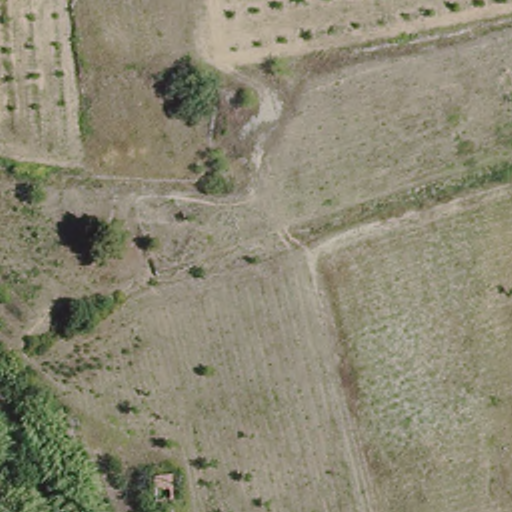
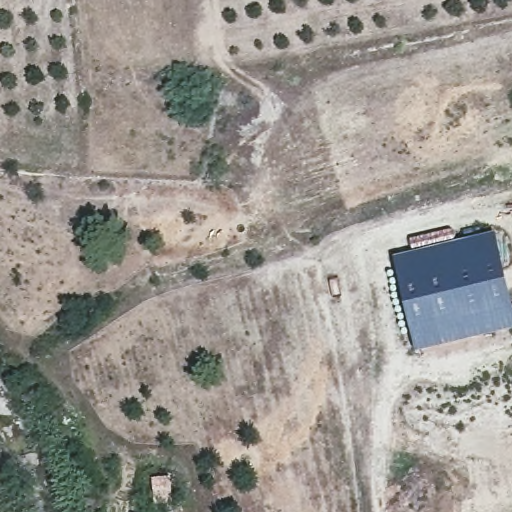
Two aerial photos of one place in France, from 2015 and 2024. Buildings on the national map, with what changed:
new [(512,275),(512,335),(425,354),(406,263),(504,241),(512,275)]
unchanged [(151,500),(149,475),(168,474),(169,498),(151,500)]

